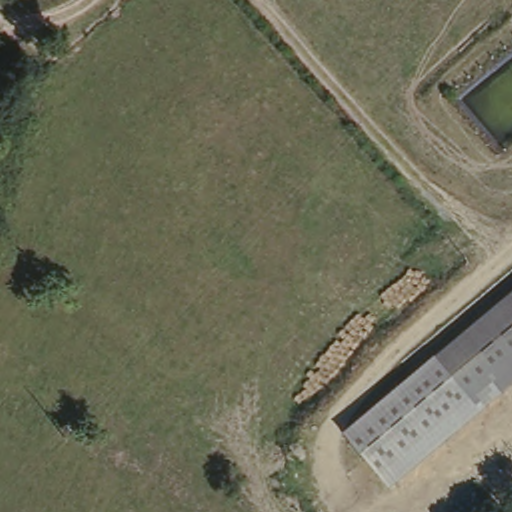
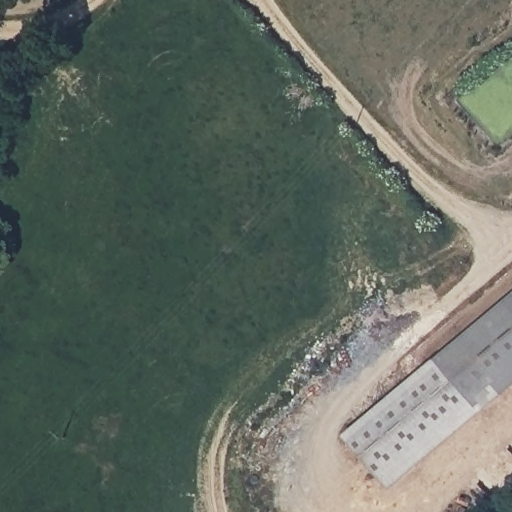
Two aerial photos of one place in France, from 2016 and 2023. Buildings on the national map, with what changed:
unchanged [(512,301),(512,388),(482,413),(439,362),(512,301)]
unchanged [(482,413),(393,490),(348,435),(439,362),(482,413)]

